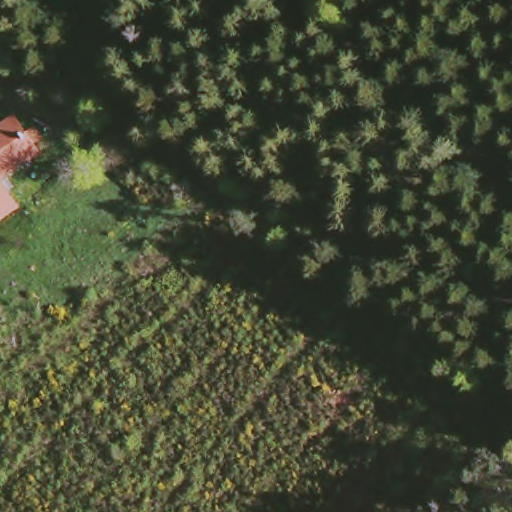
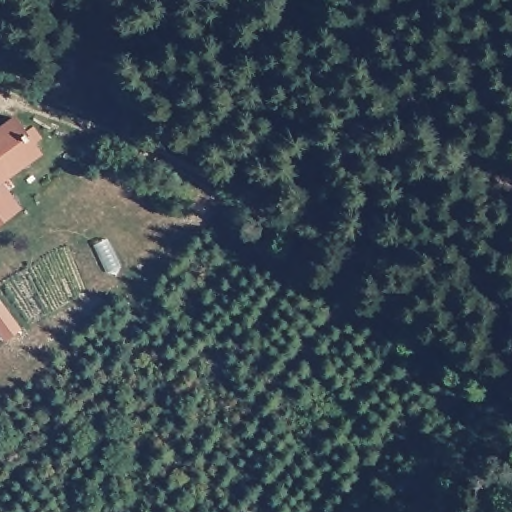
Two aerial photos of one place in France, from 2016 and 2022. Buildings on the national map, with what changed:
unchanged [(17,111),(45,154),(2,181),(20,209),(0,221),(0,122),(17,111)]

